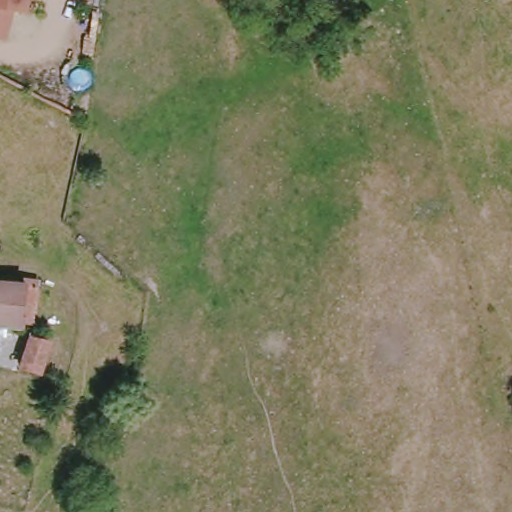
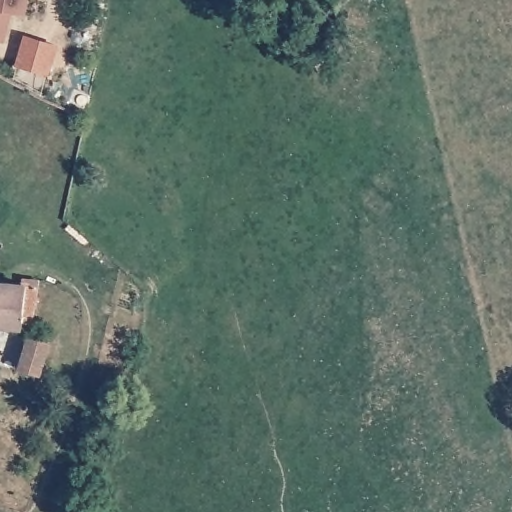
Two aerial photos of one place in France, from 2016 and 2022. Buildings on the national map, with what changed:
unchanged [(7,9),(0,37),(0,0),(26,0),(24,10),(7,9)]
new [(16,66),(24,35),(58,44),(51,75),(16,66)]
unchanged [(18,326),(0,325),(0,280),(21,282),(18,326)]
unchanged [(38,370),(17,363),(27,330),(48,336),(38,370)]

